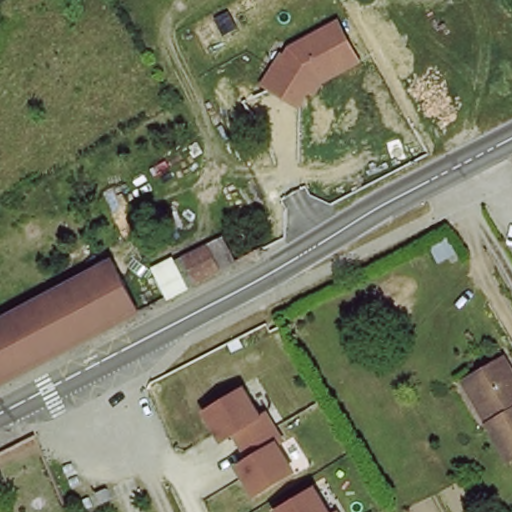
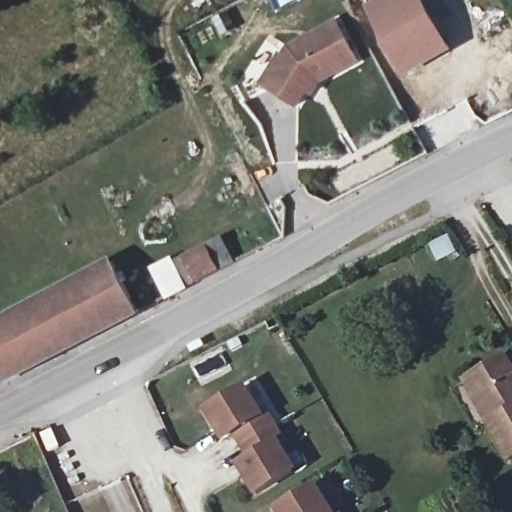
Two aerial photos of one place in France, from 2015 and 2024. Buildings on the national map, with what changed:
new [(452,50),(405,76),(366,5),(375,0),(424,0),(452,50)]
unchanged [(361,63),(324,84),(318,80),(301,108),(259,86),(277,52),(283,55),(287,46),(338,19),(361,63)]
unchanged [(188,289),(174,264),(223,238),(236,264),(188,289)]
unchanged [(139,314),(0,387),(0,323),(113,263),(139,314)]
unchanged [(512,371),(512,458),(511,459),(488,421),(464,382),(473,376),(504,358),(512,371)]
unchanged [(247,390),(264,419),(269,415),(285,443),(279,446),(296,475),(258,497),(241,468),(253,461),(238,435),(226,442),(208,413),(247,390)]
unchanged [(334,512),(280,512),(318,487),(334,512)]
unchanged [(344,512),(338,512),(342,509),(344,512)]

